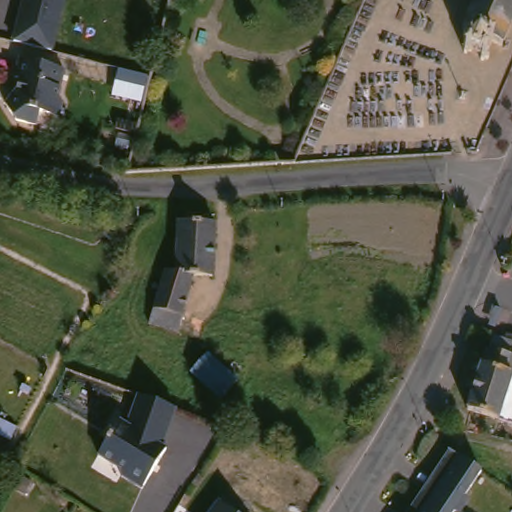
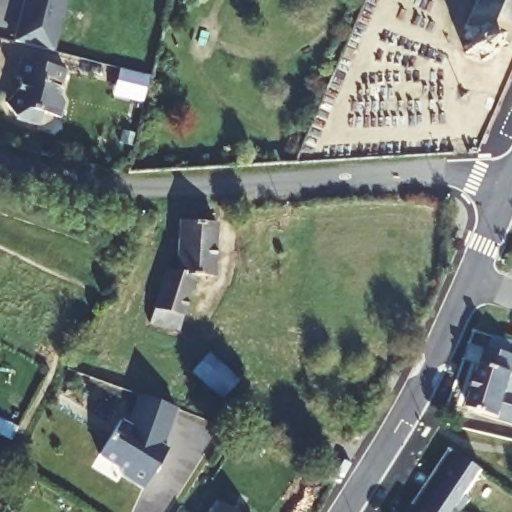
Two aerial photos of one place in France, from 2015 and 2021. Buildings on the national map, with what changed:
unchanged [(21,36),(29,0),(69,0),(58,46),(21,36)]
unchanged [(497,42),(493,54),(501,59),(498,66),(490,62),(486,69),(467,58),(467,57),(468,54),(467,51),(463,50),(466,44),(470,45),(470,31),(467,27),(478,0),(512,0),(512,34),(508,44),(497,42)]
unchanged [(66,64),(60,89),(65,97),(62,111),(43,107),(40,119),(19,114),(7,97),(17,91),(22,74),(17,72),(22,53),(66,64)]
unchanged [(187,217),(224,222),(219,276),(196,274),(184,327),(155,319),(169,266),(184,268),(187,234),(187,217)]
unchanged [(491,351),(495,339),(499,341),(512,345),(512,356),(512,358),(512,422),(467,405),(487,349),(491,351)]
unchanged [(226,364),(244,379),(227,401),(194,370),(211,352),(226,364)]
unchanged [(125,471),(124,462),(102,450),(122,416),(131,421),(142,390),(179,403),(165,442),(170,445),(145,484),(125,471)]
unchanged [(467,490),(471,492),(462,505),(457,502),(450,512),(418,512),(418,511),(411,506),(427,482),(434,487),(445,471),(437,466),(452,443),(483,463),(467,490)]
unchanged [(226,498),(246,512),(216,512),(226,498)]

